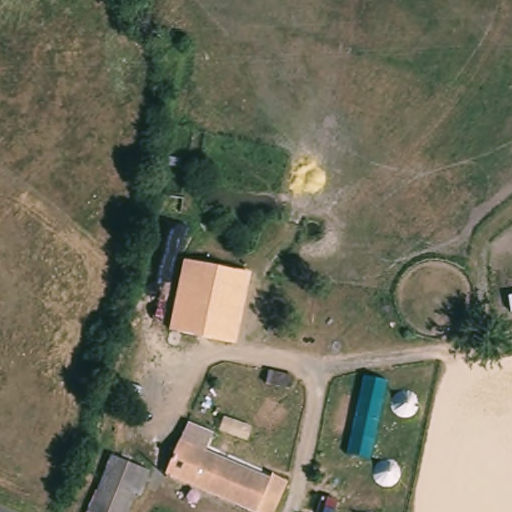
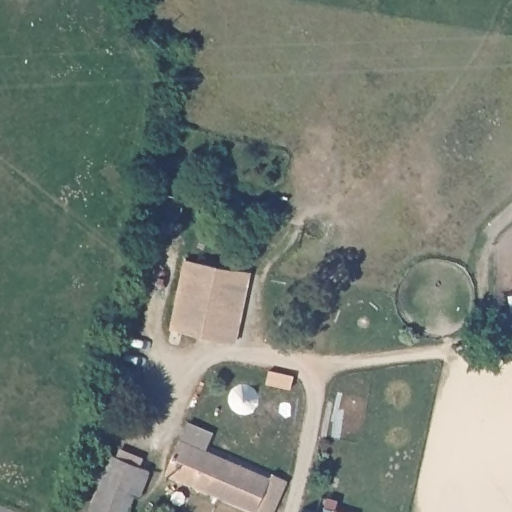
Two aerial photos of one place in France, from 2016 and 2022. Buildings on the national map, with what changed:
unchanged [(245,275),(231,346),(170,332),(183,263),(245,275)]
unchanged [(188,421),(213,432),(204,455),(219,460),(207,492),(180,481),(167,476),(178,444),(188,421)]
unchanged [(149,470),(138,501),(132,498),(103,486),(113,457),(149,470)]
unchanged [(233,466),(265,478),(268,470),(285,475),(272,512),(256,512),(207,492),(219,460),(233,466)]
unchanged [(132,498),(127,512),(95,512),(103,486),(132,498)]

